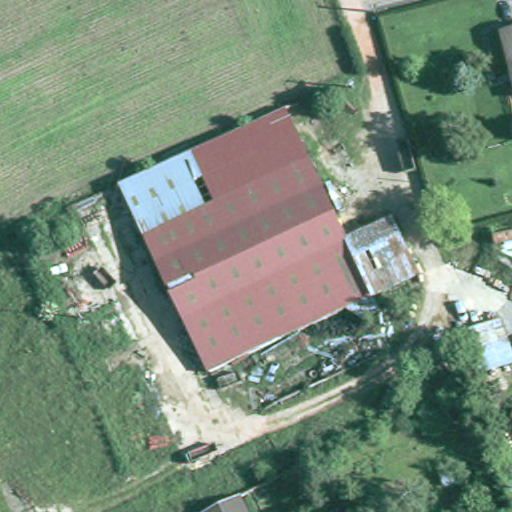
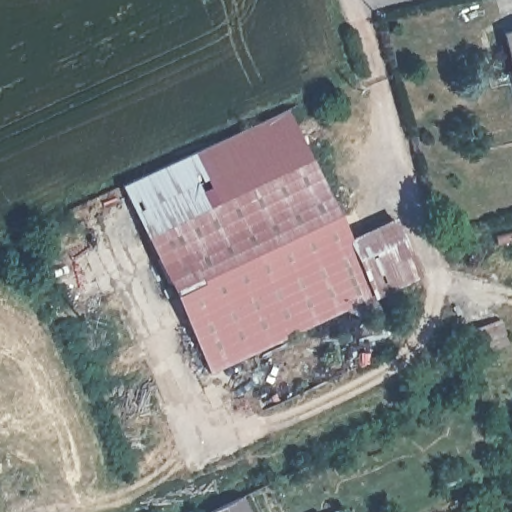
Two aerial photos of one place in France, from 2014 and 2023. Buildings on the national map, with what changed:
unchanged [(512,32),(512,71),(502,34),(512,32)]
unchanged [(287,109),(350,236),(394,218),(421,276),(370,300),(371,299),(346,243),(317,255),(316,250),(287,187),(256,123),(287,109)]
unchanged [(150,249),(121,184),(256,123),(287,187),(150,249)]
unchanged [(317,255),(346,243),(371,299),(370,300),(207,373),(150,249),(287,187),(317,255)]
unchanged [(484,325),(492,347),(472,355),(463,333),(484,325)]
unchanged [(239,512),(218,512),(222,510),(235,503),(239,512)]

